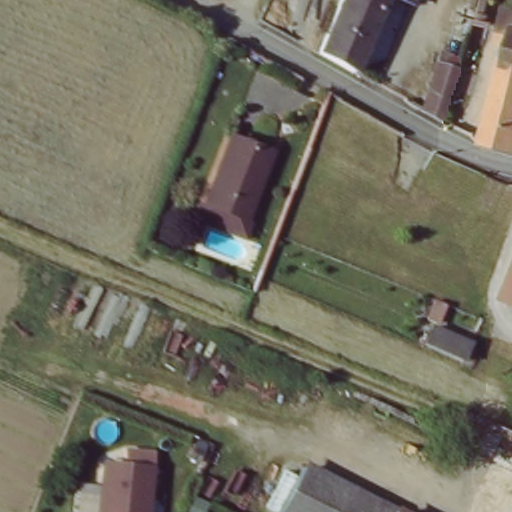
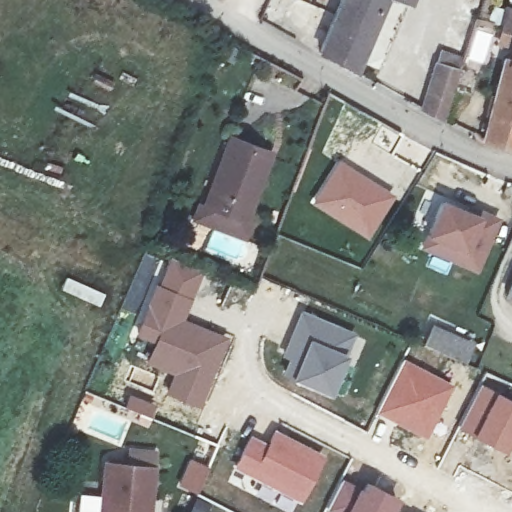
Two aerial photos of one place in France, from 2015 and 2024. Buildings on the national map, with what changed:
unchanged [(318,56),(341,0),(381,0),(350,74),(318,56)]
unchanged [(399,0),(407,0),(406,3),(399,0)]
unchanged [(504,45),(508,23),(512,24),(512,47),(504,45)]
unchanged [(420,113),(439,55),(461,62),(441,124),(420,113)]
unchanged [(487,147),(499,80),(512,61),(512,150),(487,147)]
demolished [(426,149),(419,163),(403,154),(409,140),(426,149)]
unchanged [(264,159),(238,226),(198,210),(211,174),(214,174),(226,144),(264,159)]
new [(338,158),(396,194),(369,241),(309,203),(338,158)]
new [(445,192),(469,203),(471,197),(482,202),(500,210),(478,259),(441,243),(426,236),(431,224),(445,192)]
new [(144,252),(162,259),(160,264),(146,300),(142,299),(136,312),(121,305),(144,252)]
new [(144,304),(146,300),(160,264),(163,265),(168,254),(203,270),(184,319),(231,337),(202,409),(165,394),(171,374),(146,363),(153,342),(136,335),(144,304)]
new [(65,275),(105,293),(99,307),(59,289),(65,275)]
unchanged [(505,298),(512,283),(512,281),(512,300),(505,298)]
unchanged [(447,309),(452,312),(448,322),(444,320),(442,326),(432,322),(435,314),(427,310),(432,299),(448,304),(447,305),(447,309)]
new [(299,308),(355,331),(329,396),(283,373),(287,359),(280,356),(299,308)]
unchanged [(436,348),(444,330),(479,348),(472,364),(436,348)]
new [(403,357),(452,384),(427,439),(374,412),(403,357)]
new [(479,383),(512,399),(512,429),(502,450),(457,428),(479,383)]
new [(128,392),(157,404),(151,422),(123,408),(128,392)]
new [(249,432),(266,440),(273,427),(326,454),(297,503),(232,468),(249,432)]
unchanged [(158,512),(85,512),(85,493),(108,493),(111,466),(136,466),(134,452),(166,454),(158,512)]
new [(196,494),(176,486),(188,457),(210,467),(196,494)]
new [(394,495),(386,512),(323,512),(341,476),(358,484),(361,478),(394,495)]
new [(209,512),(186,512),(196,494),(213,503),(209,512)]
demolished [(392,509),(399,512),(390,512),(392,509)]

